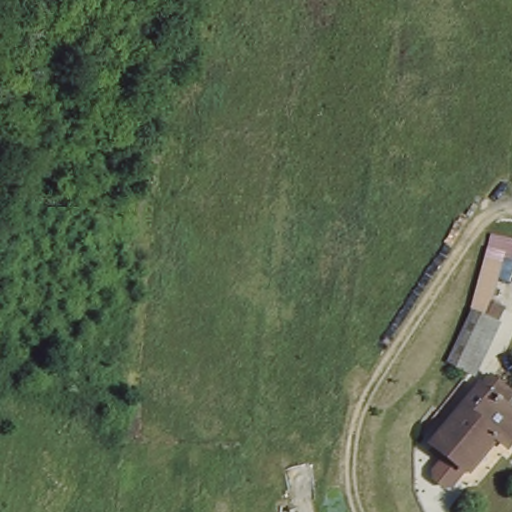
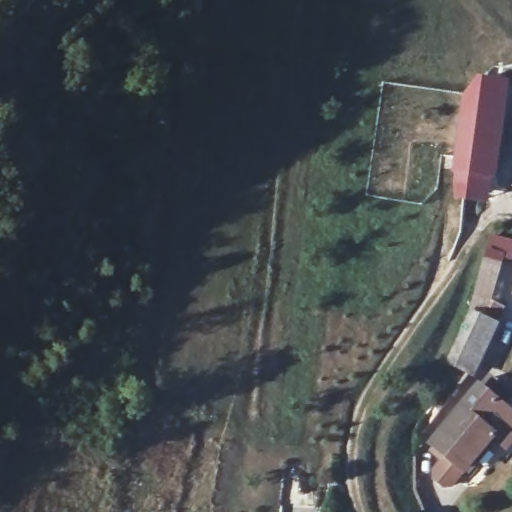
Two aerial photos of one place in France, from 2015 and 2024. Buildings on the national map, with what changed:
new [(495,178),(490,177),(487,202),(452,198),(454,174),(451,174),(463,92),(478,75),(509,79),(495,178)]
unchanged [(503,259),(490,301),(505,308),(497,324),(500,325),(475,377),(445,362),(471,311),(490,235),(512,240),(512,262),(503,259)]
unchanged [(477,400),(486,387),(505,403),(498,414),(512,424),(512,447),(508,454),(491,442),(465,477),(432,455),(472,396),(477,400)]

